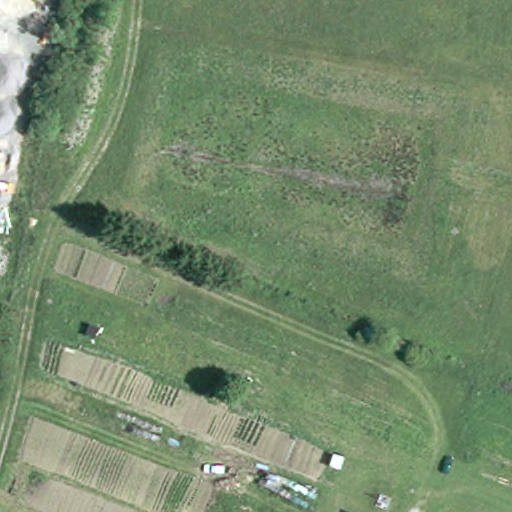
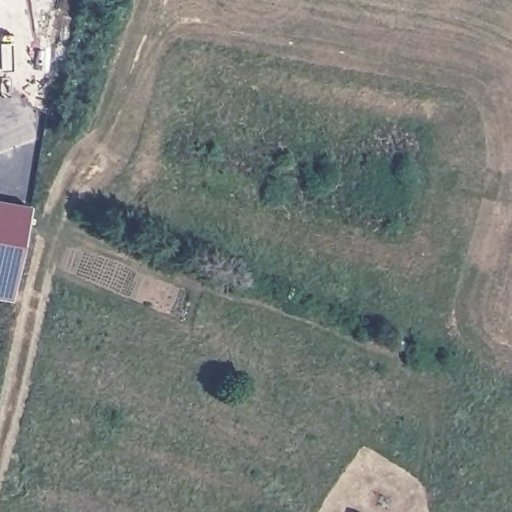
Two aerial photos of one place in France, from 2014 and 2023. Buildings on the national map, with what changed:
new [(11,301),(0,299),(0,202),(28,207),(11,301)]
unchanged [(407,353),(365,336),(368,327),(410,344),(407,353)]

